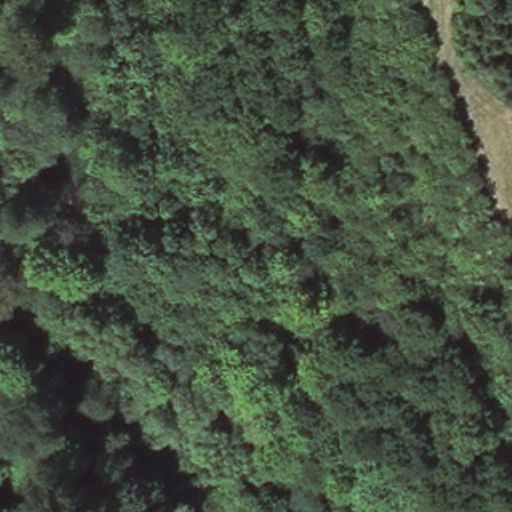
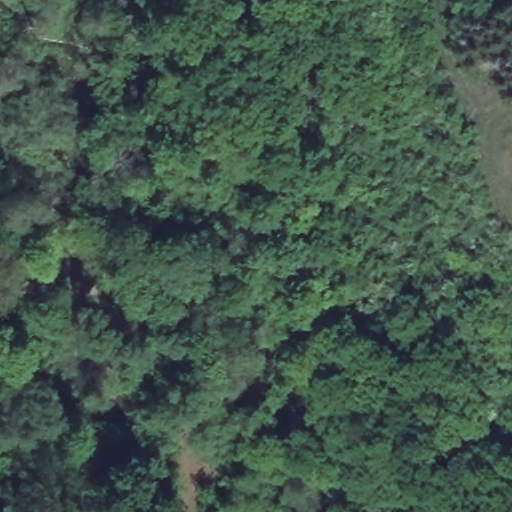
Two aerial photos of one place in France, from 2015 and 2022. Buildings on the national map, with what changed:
unchanged [(51,263),(57,286),(26,289),(24,266),(51,263)]

